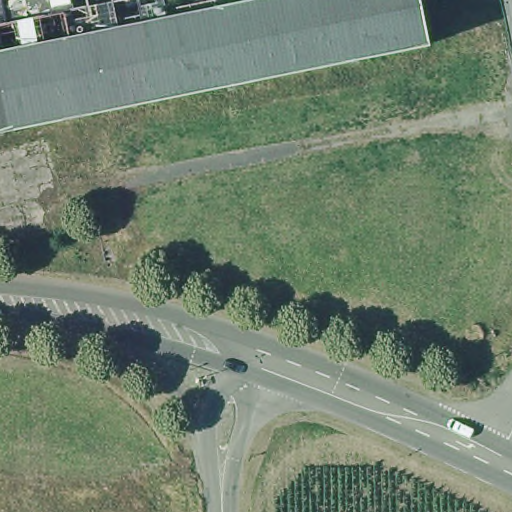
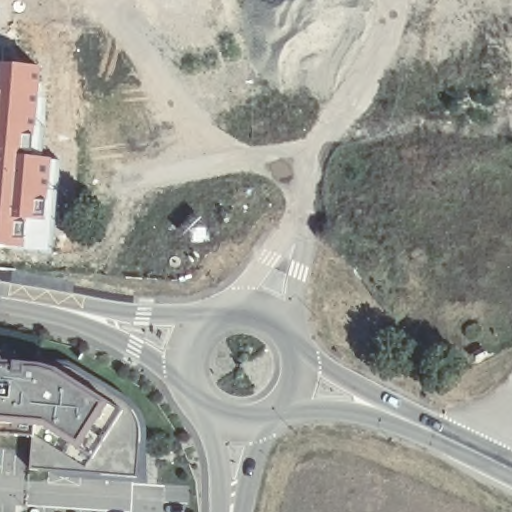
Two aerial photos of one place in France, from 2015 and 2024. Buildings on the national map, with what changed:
demolished [(60,8),(0,21),(0,0),(59,0),(60,5),(60,8)]
demolished [(110,105),(107,84),(107,81),(97,25),(219,0),(423,0),(430,38),(110,105)]
demolished [(74,31),(0,46),(0,21),(60,8),(60,5),(69,4),(74,31)]
demolished [(107,81),(107,84),(110,105),(87,109),(85,91),(74,31),(97,25),(107,81)]
demolished [(85,91),(87,109),(0,127),(0,46),(74,31),(85,91)]
new [(41,68),(40,124),(43,124),(42,158),(60,160),(54,190),(57,190),(50,253),(0,248),(0,64),(41,68)]
new [(17,354),(17,363),(37,366),(44,366),(57,370),(107,403),(122,413),(92,460),(77,450),(42,428),(38,428),(37,438),(32,438),(0,435),(0,352),(17,354)]
new [(50,476),(50,472),(29,470),(32,438),(37,438),(38,428),(42,428),(77,450),(92,460),(122,413),(107,403),(57,370),(44,366),(37,366),(39,358),(52,360),(68,363),(124,396),(136,405),(142,414),(146,426),(149,485),(50,476)]

